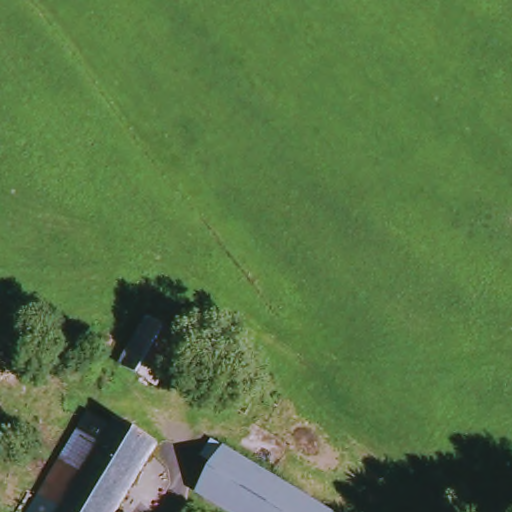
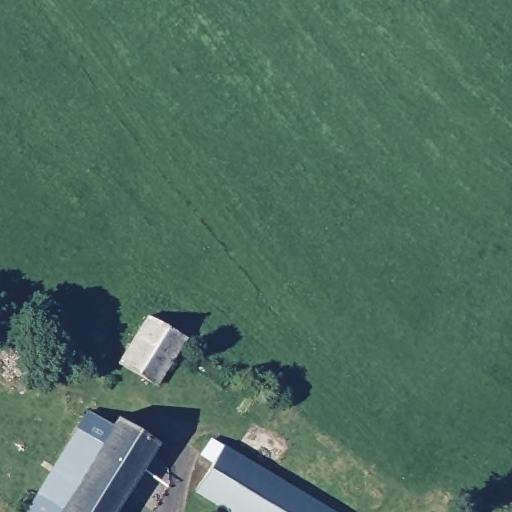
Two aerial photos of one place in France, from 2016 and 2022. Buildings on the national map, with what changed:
unchanged [(185,336),(157,384),(119,363),(150,314),(185,336)]
unchanged [(92,408),(112,420),(117,414),(159,439),(114,512),(57,512),(35,499),(92,408)]
unchanged [(219,512),(185,490),(208,456),(195,447),(202,435),(327,512),(219,512)]
unchanged [(57,512),(28,512),(35,499),(57,512)]

